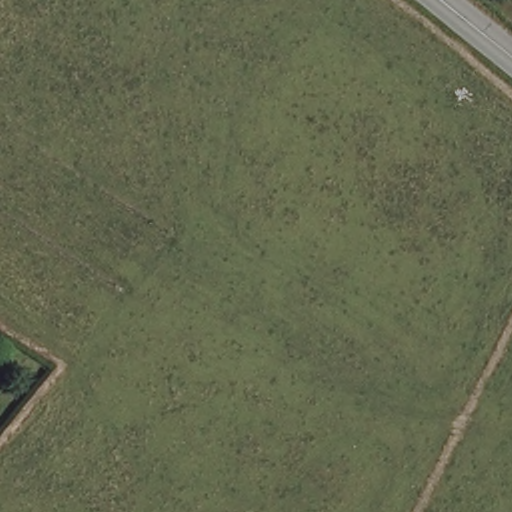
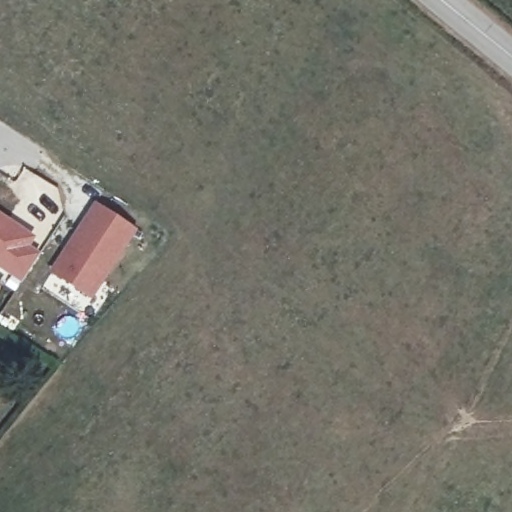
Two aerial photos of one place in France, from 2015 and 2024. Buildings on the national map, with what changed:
new [(139,228),(95,294),(48,263),(90,196),(139,228)]
new [(36,236),(31,245),(40,252),(18,284),(12,281),(11,278),(0,270),(0,211),(36,236)]

